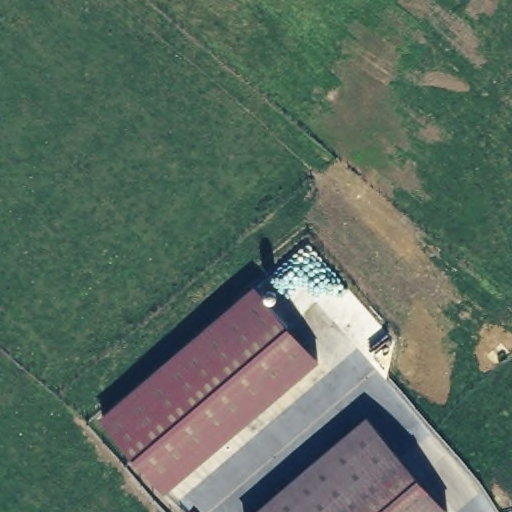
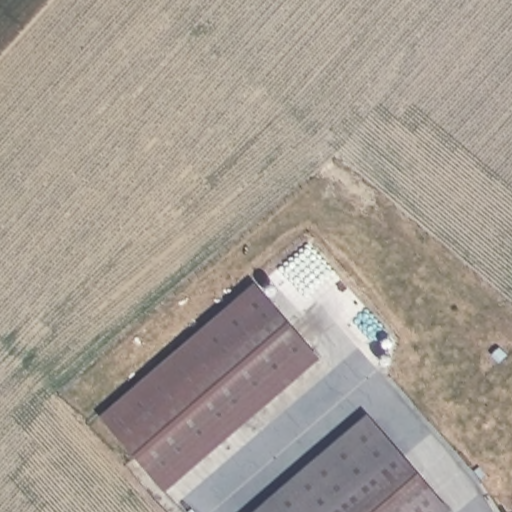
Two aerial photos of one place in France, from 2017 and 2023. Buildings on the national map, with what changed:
unchanged [(101,416),(241,297),(252,288),(315,358),(315,361),(165,488),(101,416)]
unchanged [(444,512),(265,512),(366,424),(444,512)]

